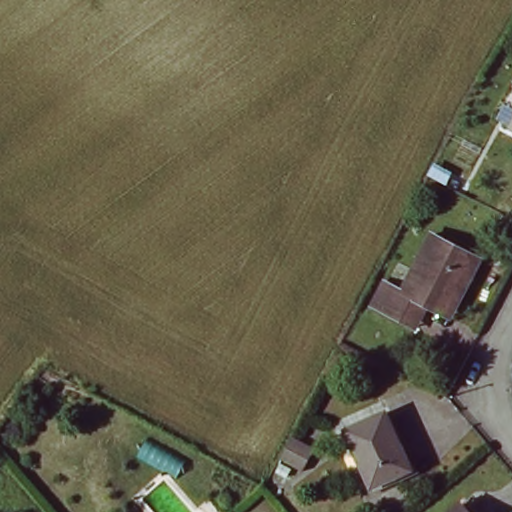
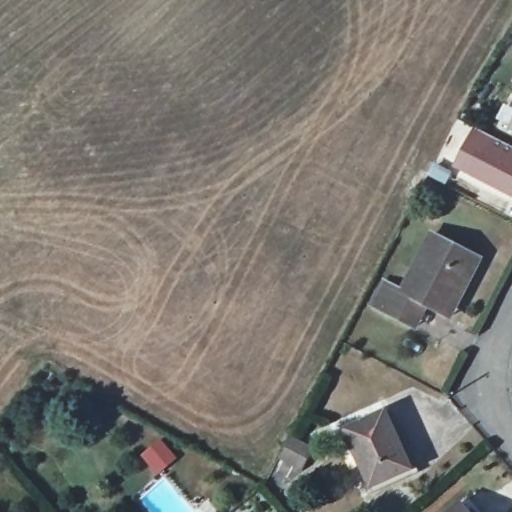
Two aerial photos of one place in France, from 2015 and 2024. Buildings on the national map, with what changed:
unchanged [(510,129),(512,124),(512,130),(510,129)]
new [(474,127),(512,146),(512,198),(452,166),(474,127)]
unchanged [(402,325),(370,307),(383,285),(400,295),(433,236),(480,262),(459,299),(448,319),(441,315),(425,307),(412,331),(402,325)]
unchanged [(388,416),(410,472),(375,486),(352,429),(388,416)]
unchanged [(469,512),(455,512),(463,505),(469,512)]

